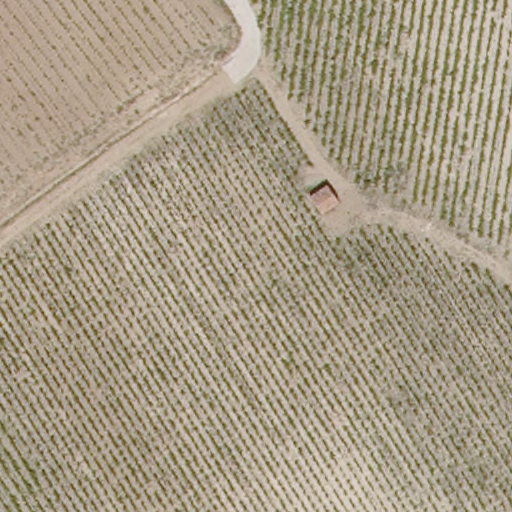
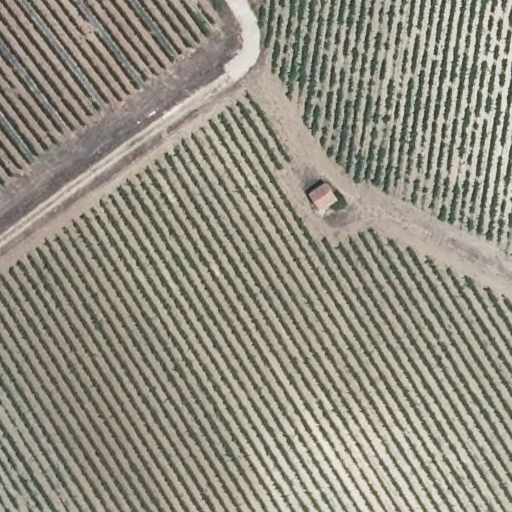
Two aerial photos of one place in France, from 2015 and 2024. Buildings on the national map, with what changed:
unchanged [(340,208),(323,218),(312,200),(328,189),(340,208)]

